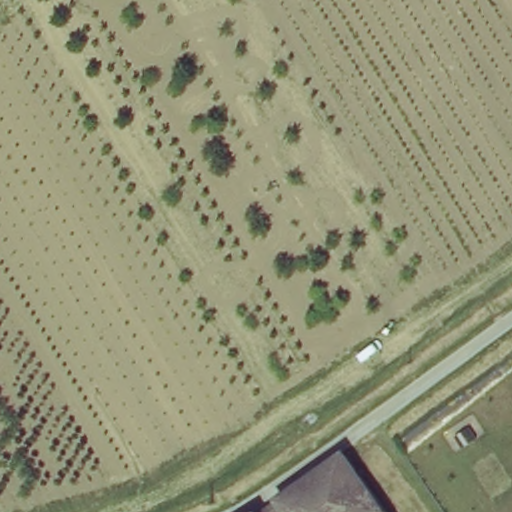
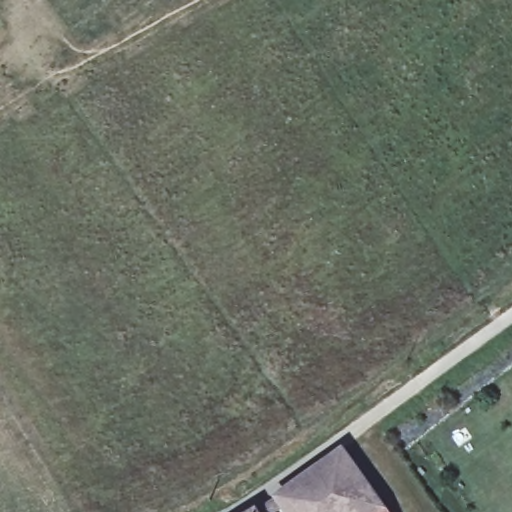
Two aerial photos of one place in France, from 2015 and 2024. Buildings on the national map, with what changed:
unchanged [(337,463),(360,496),(368,508),(371,512),(279,512),(275,506),(337,463)]

